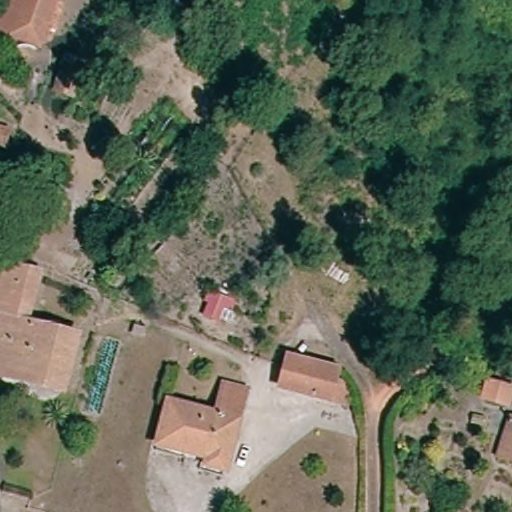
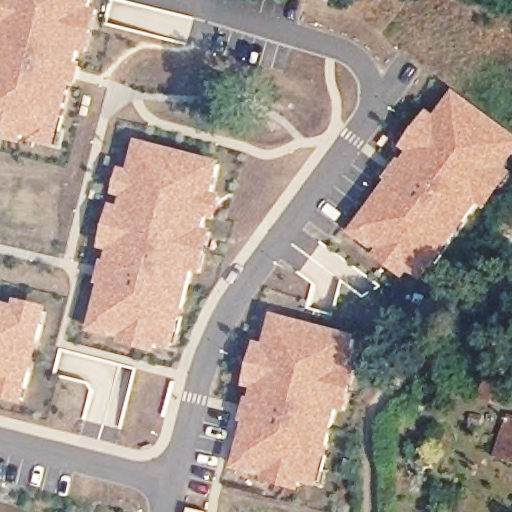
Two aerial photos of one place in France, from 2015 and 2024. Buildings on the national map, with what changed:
demolished [(0,35),(0,22),(7,0),(59,0),(42,50),(0,35)]
new [(27,137),(27,136),(0,129),(0,122),(2,112),(0,111),(0,57),(8,26),(7,27),(1,25),(6,7),(7,0),(97,0),(94,11),(95,10),(102,12),(97,30),(92,49),(85,47),(85,46),(64,130),(68,115),(72,116),(65,145),(42,139),(43,135),(46,136),(29,132),(27,137)]
demolished [(66,58),(87,65),(78,97),(56,90),(66,58)]
new [(421,151),(425,154),(446,125),(442,122),(462,96),(512,133),(512,163),(507,170),(503,167),(492,182),(482,196),(486,199),(436,267),(422,257),(411,272),(410,271),(411,270),(388,254),(387,254),(390,249),(376,238),(382,230),(369,221),(420,152),(421,151)]
demolished [(13,130),(9,144),(0,141),(0,110),(17,116),(13,130)]
new [(0,122),(0,111),(2,112),(0,122)]
new [(421,151),(420,152),(415,147),(426,132),(437,117),(443,121),(442,122),(446,125),(436,140),(425,154),(421,151)]
new [(95,330),(102,302),(107,303),(121,248),(120,249),(113,247),(118,229),(122,211),(130,212),(130,213),(135,194),(139,195),(144,178),(139,177),(147,145),(225,165),(217,195),(217,196),(212,195),(207,212),(212,213),(208,232),(207,232),(202,231),(198,249),(194,267),(199,267),(182,334),(166,330),(162,347),(160,347),(161,347),(133,340),(133,341),(132,340),(133,335),(116,330),(121,332),(120,336),(95,330)]
new [(139,195),(135,194),(134,195),(127,193),(132,174),(139,176),(139,177),(144,178),(139,195)]
new [(502,189),(491,204),(485,200),(486,199),(482,196),(492,182),(502,189)]
new [(219,216),(212,214),(212,213),(207,212),(212,195),(217,196),(217,195),(224,197),(219,216)]
new [(369,221),(382,230),(376,238),(380,241),(377,245),(357,230),(375,206),(378,209),(369,221)]
unchanged [(512,215),(512,242),(500,232),(512,215)]
new [(199,267),(194,267),(198,249),(202,231),(207,232),(215,233),(210,252),(205,271),(198,268),(199,267)]
new [(422,257),(436,267),(446,253),(449,256),(432,278),(416,266),(422,257)]
demolished [(0,312),(0,267),(1,263),(41,273),(29,322),(81,335),(67,390),(0,373),(0,320),(2,312),(0,312)]
new [(0,302),(27,308),(25,316),(49,322),(32,386),(29,397),(5,391),(6,386),(7,386),(0,384),(0,302)]
new [(27,304),(52,311),(49,322),(25,316),(27,308),(26,308),(27,304)]
new [(166,330),(182,334),(186,317),(190,318),(183,346),(163,341),(166,330)]
new [(360,338),(352,370),(347,368),(338,404),(343,405),(326,471),(311,467),(306,485),(305,485),(305,483),(277,477),(276,477),(277,471),(261,467),(263,457),(248,453),(265,386),(258,384),(263,365),(267,347),(275,348),(275,350),(282,318),(360,338)]
demolished [(330,402),(282,388),(290,359),(338,372),(330,402)]
new [(342,406),(343,405),(338,404),(342,386),(347,368),(352,370),(352,369),(360,371),(355,390),(350,408),(342,406)]
demolished [(227,471),(205,466),(207,457),(159,444),(170,400),(220,413),(227,385),(247,390),(227,471)]
unchanged [(486,386),(512,393),(512,405),(510,412),(481,404),(486,386)]
unchanged [(512,423),(512,466),(497,462),(508,422),(512,423)]
new [(248,453),(263,457),(261,467),(266,468),(265,472),(240,466),(247,437),(252,439),(248,453)]
new [(311,467),(326,471),(330,455),(335,456),(327,483),(307,478),(311,467)]
new [(213,512),(194,512),(195,507),(213,512)]

